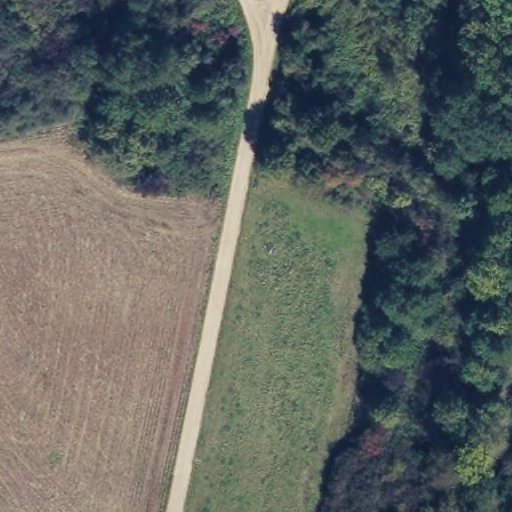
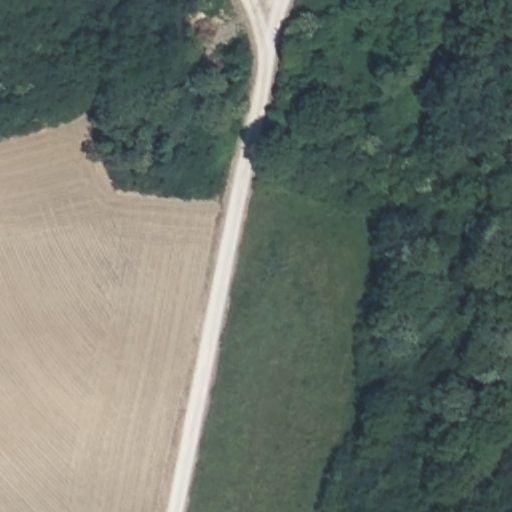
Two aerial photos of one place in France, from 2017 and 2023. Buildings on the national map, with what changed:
[]

